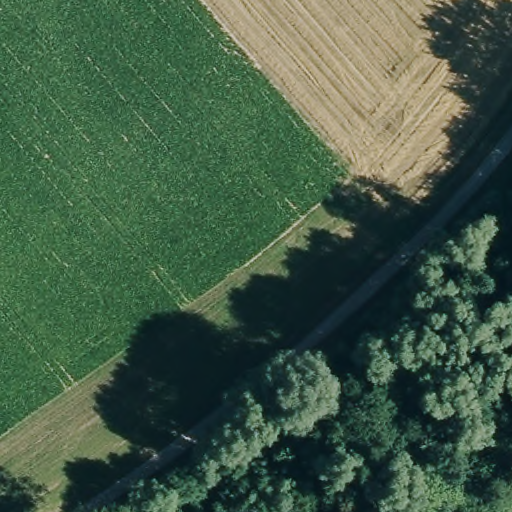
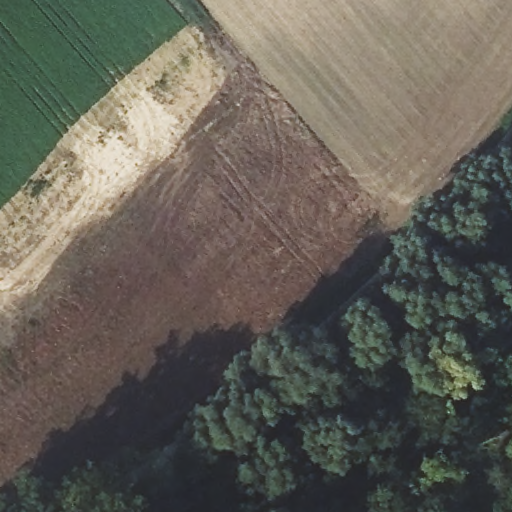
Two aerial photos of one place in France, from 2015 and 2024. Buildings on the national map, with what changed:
unchanged [(481,244),(512,219),(512,274),(481,244)]

